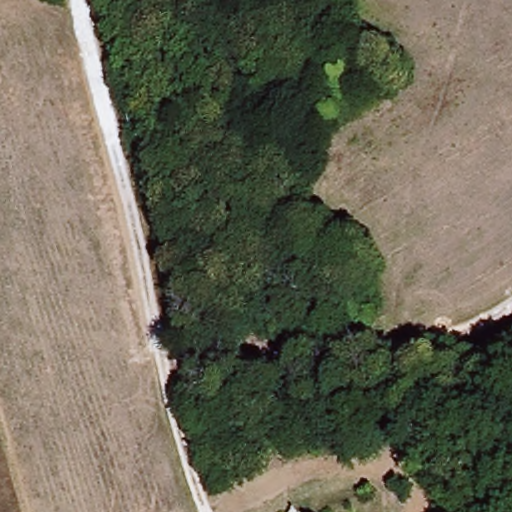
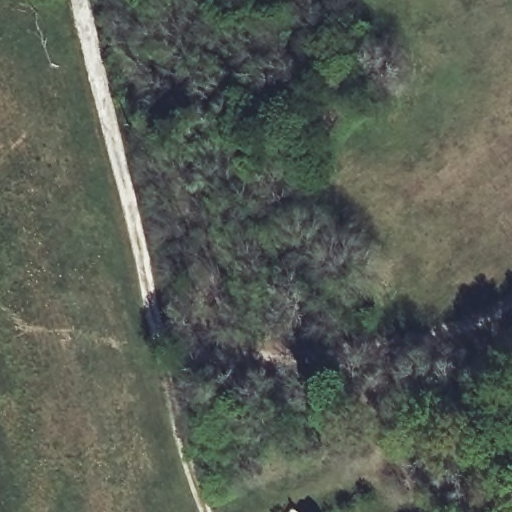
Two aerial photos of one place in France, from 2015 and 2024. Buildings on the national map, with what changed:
unchanged [(300,506),(307,512),(295,512),(300,506)]

